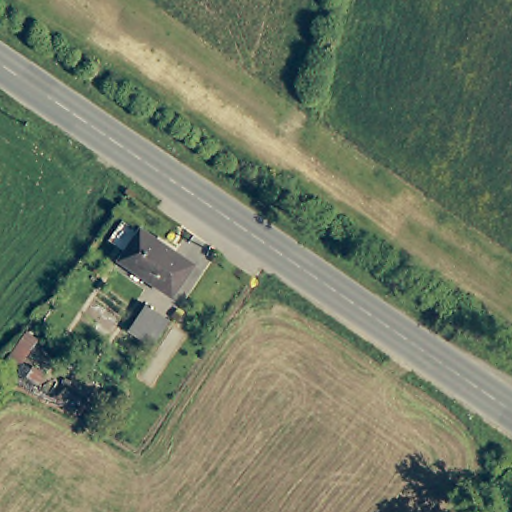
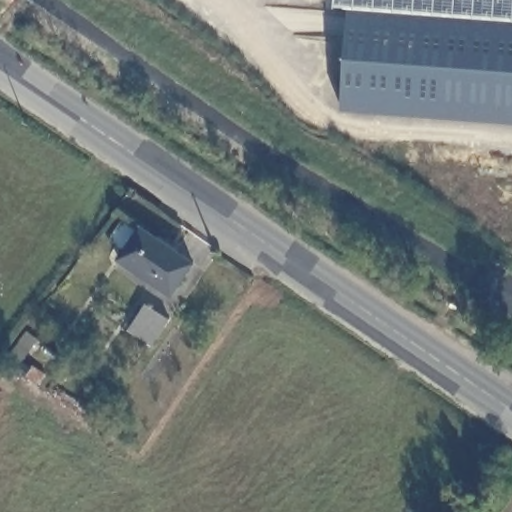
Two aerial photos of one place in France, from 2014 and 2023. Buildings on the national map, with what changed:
new [(351,6),(335,5),(335,0),(512,0),(512,18),(351,6)]
new [(512,18),(512,124),(345,113),(351,6),(512,18)]
unchanged [(195,264),(175,293),(125,258),(146,229),(195,264)]
unchanged [(172,320),(156,343),(135,331),(152,306),(172,320)]
unchanged [(49,333),(28,363),(15,353),(36,325),(49,333)]

